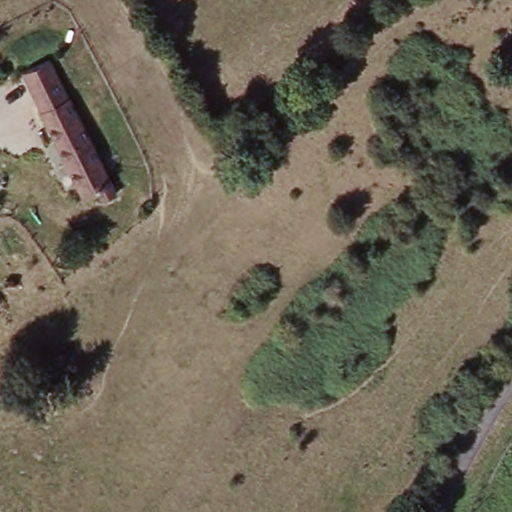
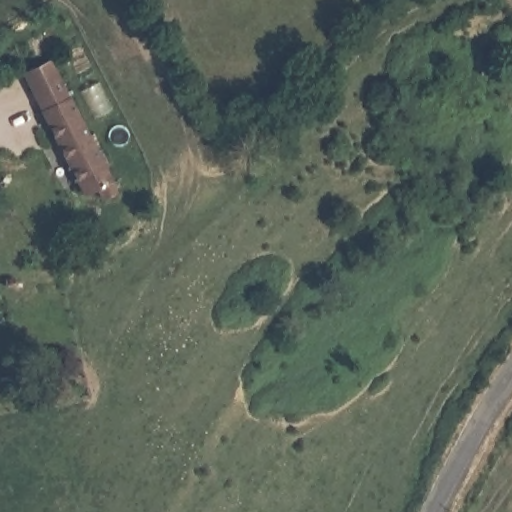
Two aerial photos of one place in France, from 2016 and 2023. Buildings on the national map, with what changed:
unchanged [(38,108),(21,71),(49,58),(64,96),(38,108)]
unchanged [(64,96),(114,192),(99,200),(92,189),(81,192),(38,108),(64,96)]

